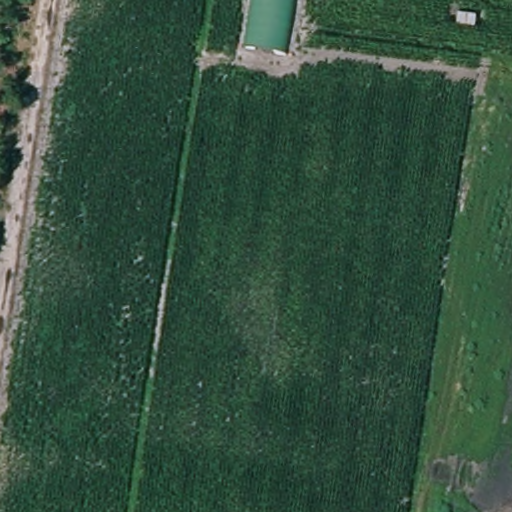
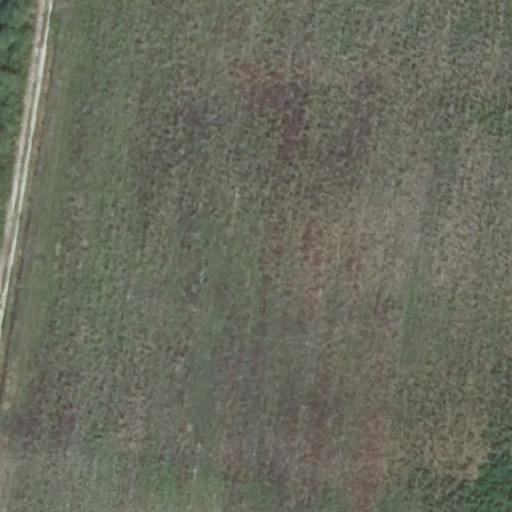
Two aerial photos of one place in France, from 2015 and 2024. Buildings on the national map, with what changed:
demolished [(287,54),(243,49),(250,0),(294,0),(287,54)]

